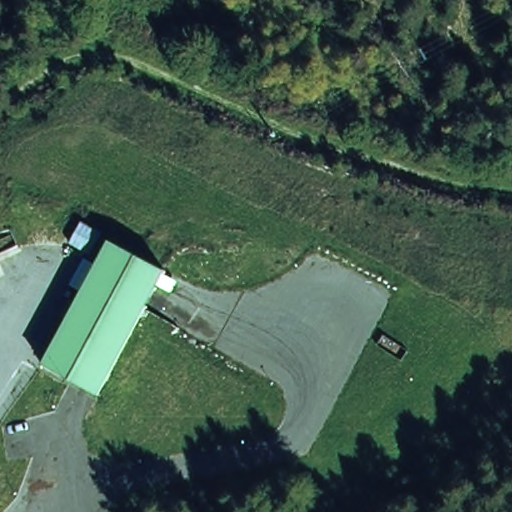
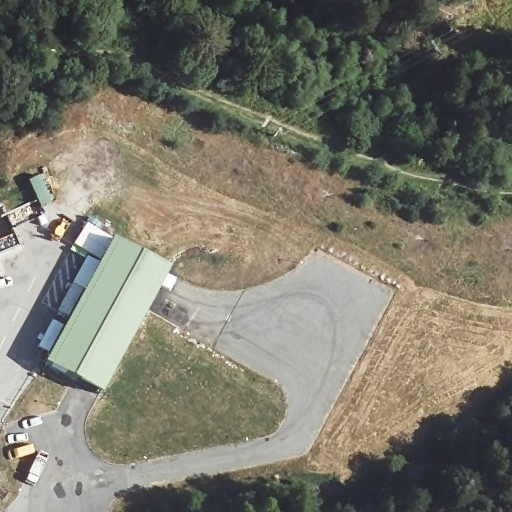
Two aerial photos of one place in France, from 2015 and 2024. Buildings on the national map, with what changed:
unchanged [(109,242),(167,274),(103,392),(46,360),(109,242)]

